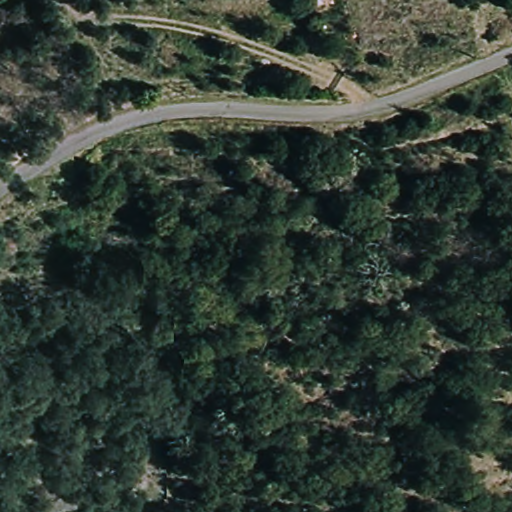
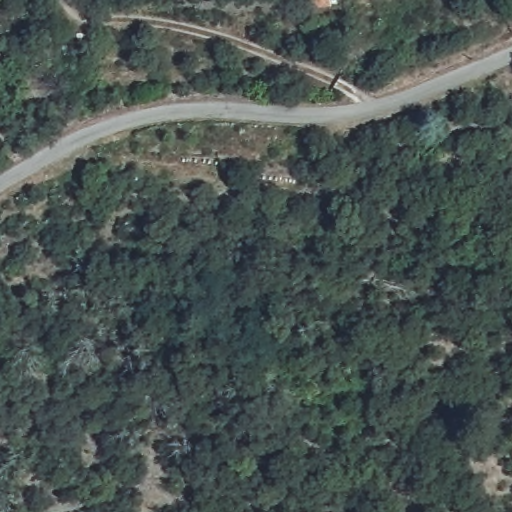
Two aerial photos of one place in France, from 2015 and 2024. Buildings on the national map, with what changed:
unchanged [(315,0),(335,0),(337,9),(316,11),(315,0)]

